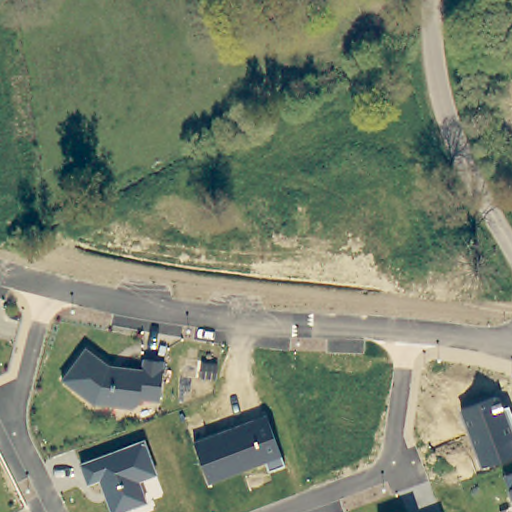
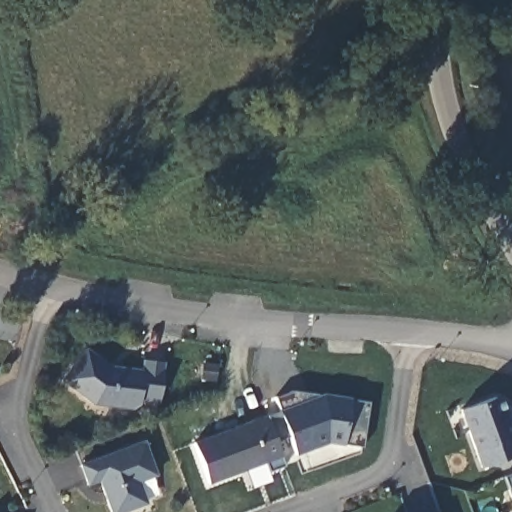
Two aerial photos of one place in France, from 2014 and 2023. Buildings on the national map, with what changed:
unchanged [(161,400),(141,398),(141,403),(136,408),(96,403),(64,379),(86,348),(110,364),(112,364),(112,367),(124,368),(124,365),(144,367),(144,358),(165,360),(161,400)]
new [(332,442),(298,455),(288,435),(275,440),(265,415),(280,410),(276,398),(296,389),(320,392),(371,401),(364,446),(332,442)]
unchanged [(480,469),(458,410),(500,395),(512,428),(512,457),(480,469)]
unchanged [(269,471),(265,461),(211,482),(194,441),(265,415),(285,466),(269,471)]
unchanged [(148,502),(122,512),(112,512),(100,479),(88,484),(80,463),(144,440),(155,474),(140,481),(148,502)]

